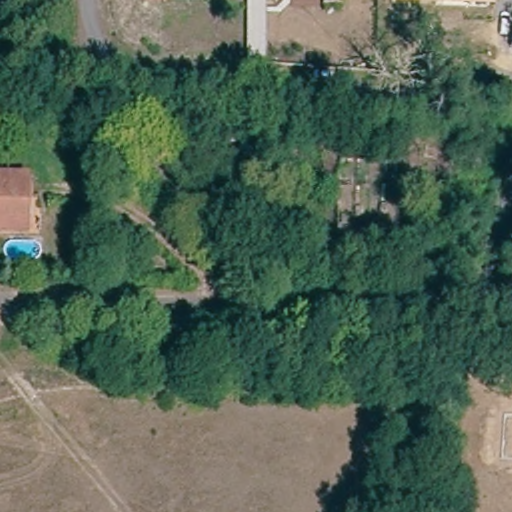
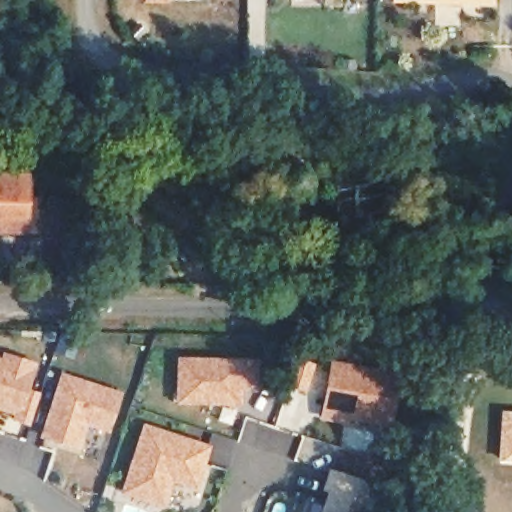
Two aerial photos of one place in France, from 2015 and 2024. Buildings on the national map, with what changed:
unchanged [(171,2),(145,2),(145,0),(171,0),(171,2)]
unchanged [(497,7),(392,3),(392,0),(497,0),(497,7)]
unchanged [(25,173),(26,222),(0,222),(0,174),(25,173)]
unchanged [(26,222),(26,235),(0,236),(0,222),(26,222)]
new [(10,418),(12,412),(0,408),(0,357),(1,357),(4,352),(38,363),(30,389),(41,393),(30,424),(10,418)]
new [(259,360),(259,392),(243,393),(243,406),(177,406),(177,359),(259,360)]
new [(400,374),(394,427),(349,420),(348,426),(322,422),(331,361),(400,374)]
new [(122,393),(110,434),(89,427),(81,451),(40,440),(62,373),(122,393)]
unchanged [(507,412),(512,413),(512,458),(503,457),(507,412)]
new [(212,447),(197,491),(173,483),(164,508),(121,494),(144,425),(212,447)]
new [(370,512),(322,512),(328,493),(323,491),(330,469),(379,485),(370,512)]

